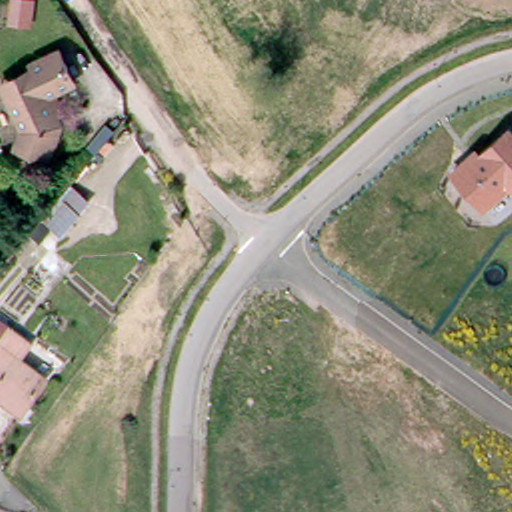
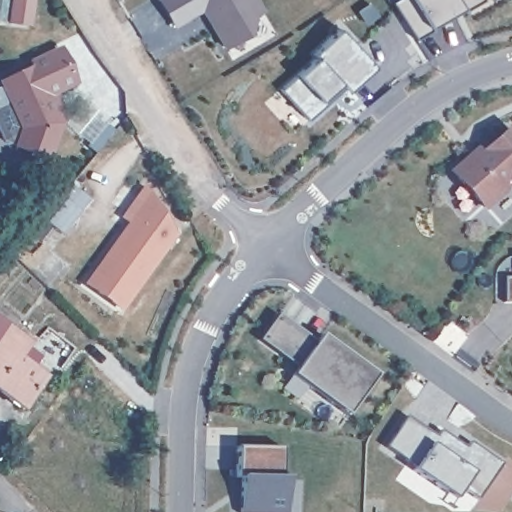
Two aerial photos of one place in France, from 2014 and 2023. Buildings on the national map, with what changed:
new [(14,0),(34,0),(32,15),(31,25),(11,22),(12,12),(14,0)]
new [(252,15),(248,35),(223,50),(202,9),(172,24),(159,0),(256,0),(262,10),(252,15)]
new [(460,7),(430,25),(433,30),(415,40),(395,4),(400,0),(483,0),(464,10),(460,7)]
new [(297,74),(316,56),(312,54),(340,30),(374,67),(347,91),(345,87),(307,119),(281,89),(297,74)]
unchanged [(60,115),(63,122),(50,155),(18,144),(25,127),(7,88),(5,83),(3,80),(10,77),(35,65),(33,61),(61,48),(76,80),(56,90),(65,112),(60,115)]
unchanged [(512,128),(512,196),(507,191),(485,213),(447,172),(475,146),(480,152),(510,125),(512,128)]
unchanged [(54,224),(40,237),(32,227),(71,179),(93,198),(64,233),(54,224)]
new [(177,235),(122,312),(82,286),(127,222),(120,217),(144,183),(177,235)]
new [(512,277),(512,300),(504,300),(503,277),(512,277)]
unchanged [(317,340),(321,335),(376,376),(347,415),(292,373),(297,366),(260,338),(278,313),(317,340)]
unchanged [(21,405),(0,389),(0,340),(45,373),(21,405)]
new [(405,417),(435,436),(439,431),(465,448),(469,441),(502,465),(478,497),(463,486),(455,499),(413,471),(385,447),(405,417)]
new [(284,448),(283,478),(288,479),(288,512),(241,512),(242,478),(237,478),(237,447),(284,448)]

